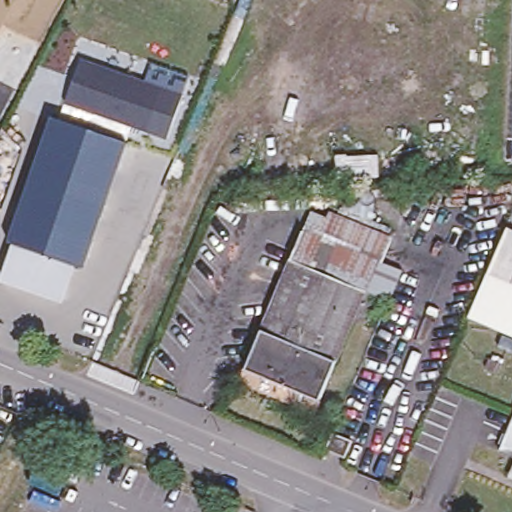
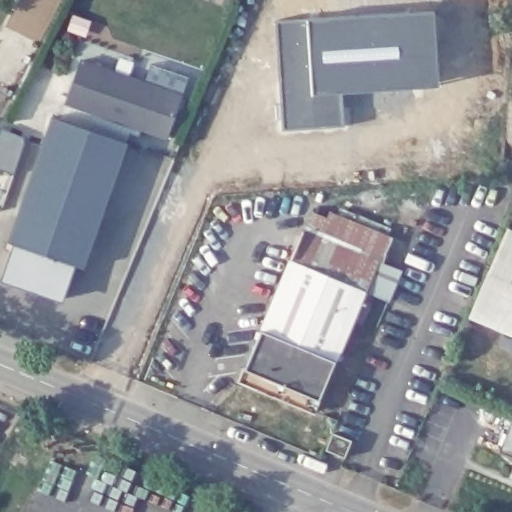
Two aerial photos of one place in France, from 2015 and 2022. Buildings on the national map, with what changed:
new [(435,16),(433,92),(340,97),(344,129),(282,131),(275,22),(435,16)]
unchanged [(148,130),(67,101),(82,57),(163,86),(148,130)]
unchanged [(128,133),(125,142),(104,212),(87,268),(78,267),(64,304),(0,282),(22,214),(53,115),(57,106),(128,133)]
unchanged [(262,331),(292,261),(315,206),(387,234),(363,292),(372,296),(358,326),(350,322),(333,362),(262,331)]
unchanged [(512,228),(512,279),(492,270),(510,227),(512,228)]
unchanged [(472,318),(492,270),(512,279),(512,351),(500,347),(507,332),(472,318)]
unchanged [(312,411),(240,381),(262,331),(333,362),(312,411)]
unchanged [(501,450),(512,424),(512,454),(501,450)]
unchanged [(350,441),(343,457),(325,449),(332,432),(350,441)]
unchanged [(508,473),(512,464),(512,475),(508,473)]

